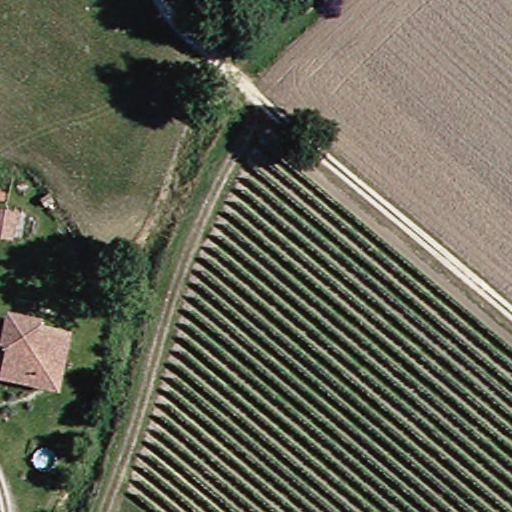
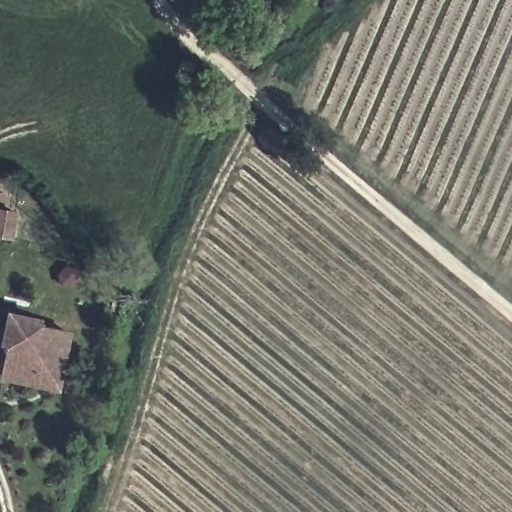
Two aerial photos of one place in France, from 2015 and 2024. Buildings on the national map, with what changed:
unchanged [(0,240),(0,215),(12,216),(9,240),(0,240)]
unchanged [(0,358),(8,324),(63,336),(59,353),(55,371),(51,388),(34,384),(14,381),(0,378),(0,358)]

